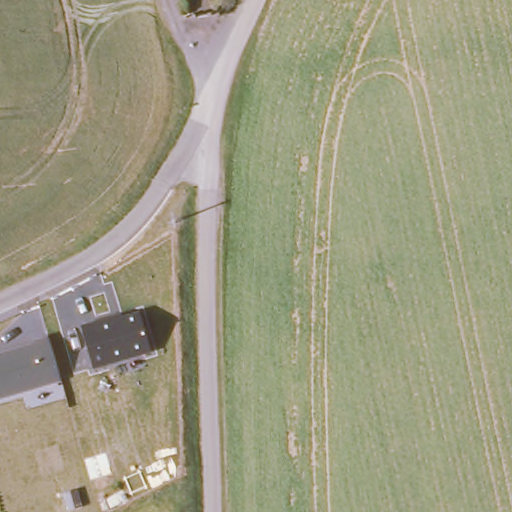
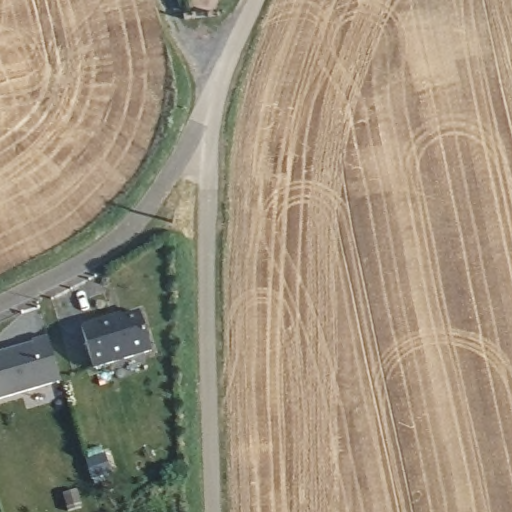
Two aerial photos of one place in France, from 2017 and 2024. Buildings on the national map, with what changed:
unchanged [(151,351),(93,368),(81,326),(111,317),(122,314),(122,317),(140,312),(151,351)]
unchanged [(0,398),(0,354),(33,344),(32,341),(48,336),(60,380),(0,398)]

